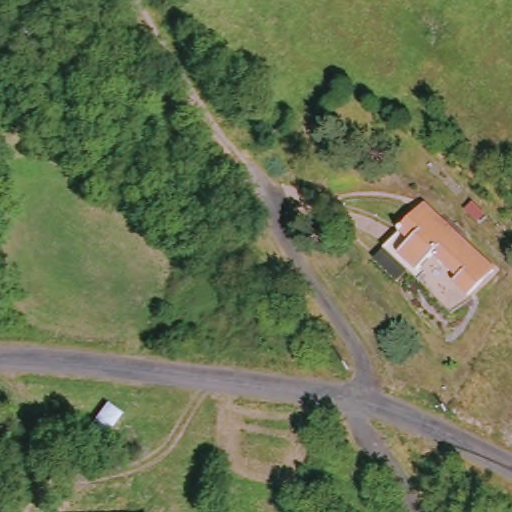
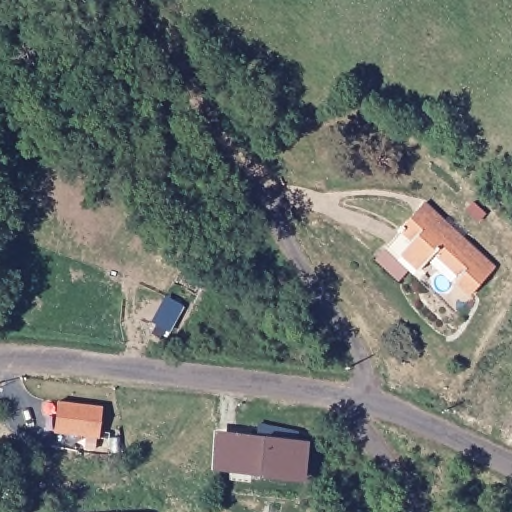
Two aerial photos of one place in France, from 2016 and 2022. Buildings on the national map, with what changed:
unchanged [(459,299),(444,285),(448,279),(425,258),(410,273),(380,246),(390,234),(388,233),(414,207),(485,270),(459,299)]
new [(97,440),(67,437),(52,435),(56,403),(71,404),(102,408),(97,440)]
new [(234,435),(309,444),(302,474),(232,466),(234,435)]

